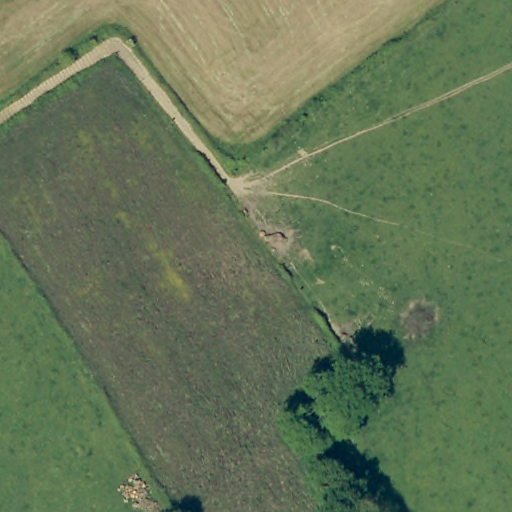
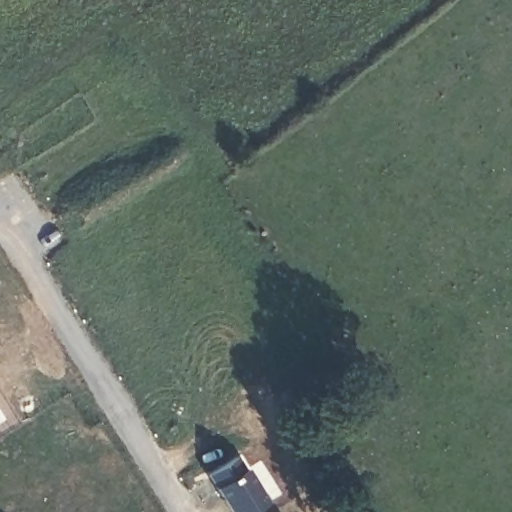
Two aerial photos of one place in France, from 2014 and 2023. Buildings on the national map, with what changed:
new [(244,473),(247,471),(267,505),(256,512),(230,512),(208,477),(236,460),(244,473)]

